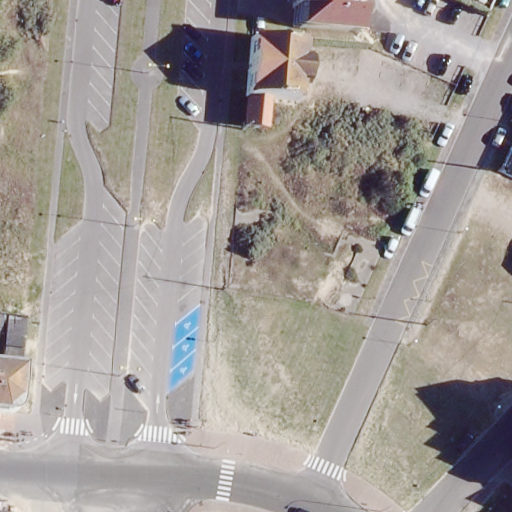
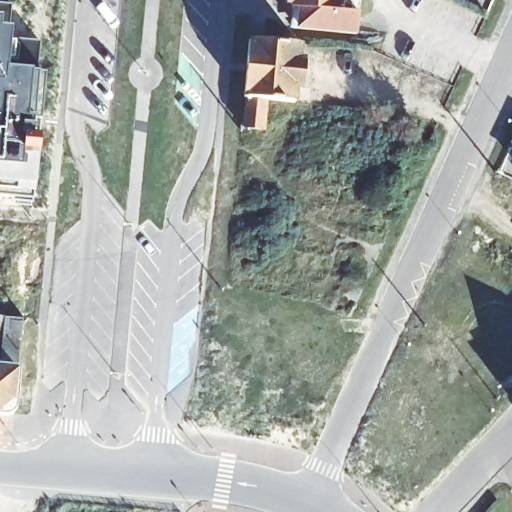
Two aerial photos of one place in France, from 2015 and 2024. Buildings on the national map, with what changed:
unchanged [(297,0),(341,0),(341,4),(297,0)]
unchanged [(341,4),(341,7),(361,10),(359,29),(303,23),(305,7),(297,6),(297,0),(341,4)]
new [(10,28),(9,35),(42,39),(38,71),(46,70),(35,191),(0,187),(0,1),(13,2),(10,28)]
unchanged [(264,122),(242,121),(245,92),(245,91),(250,34),(300,39),(298,54),(305,54),(302,82),(295,82),(294,95),(266,92),(266,95),(264,122)]
unchanged [(15,396),(0,407),(0,344),(2,331),(0,331),(0,309),(22,312),(15,396)]
demolished [(0,511),(8,512),(0,512),(0,511)]

